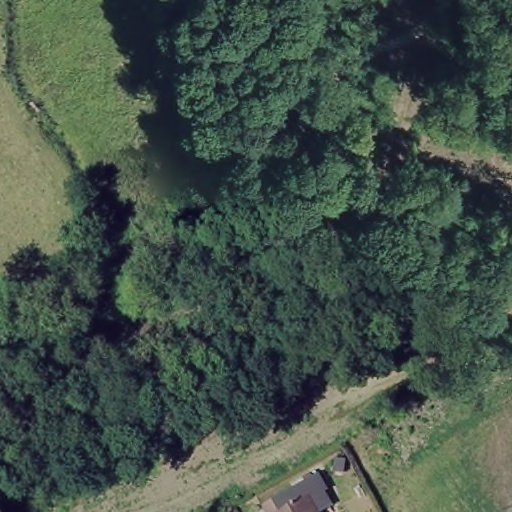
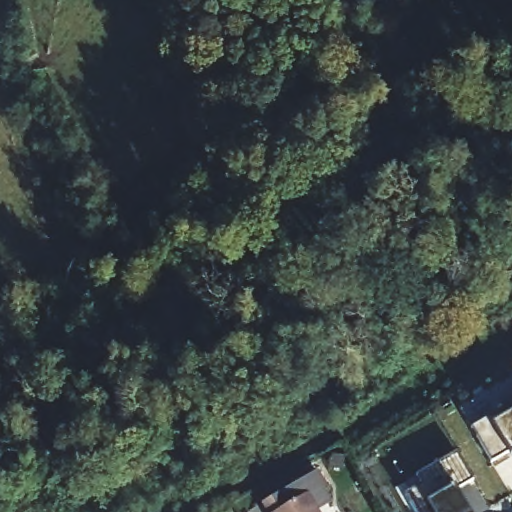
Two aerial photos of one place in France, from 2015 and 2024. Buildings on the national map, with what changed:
new [(511,455),(509,450),(494,459),(474,426),(512,404),(512,455),(511,455)]
new [(471,481),(454,489),(467,512),(415,512),(404,494),(422,485),(417,476),(456,453),(471,481)]
unchanged [(260,499),(321,462),(331,479),(321,484),(330,498),(316,506),(320,512),(268,512),(260,499)]

